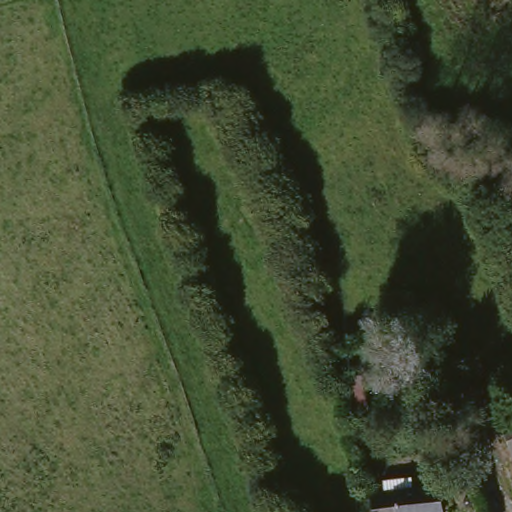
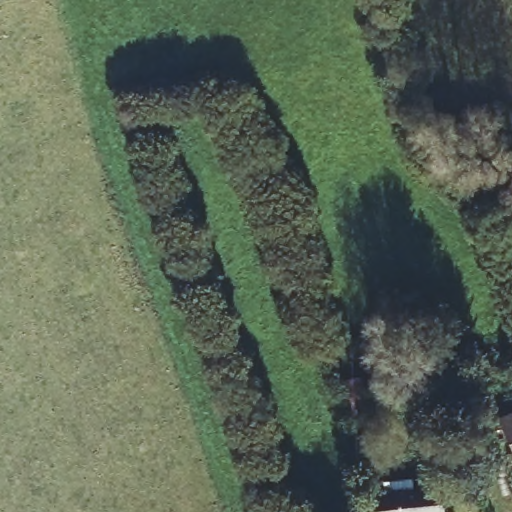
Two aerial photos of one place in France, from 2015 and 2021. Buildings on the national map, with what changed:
unchanged [(512,410),(512,457),(497,416),(512,410)]
unchanged [(443,512),(373,512),(369,498),(394,493),(436,483),(443,512)]

